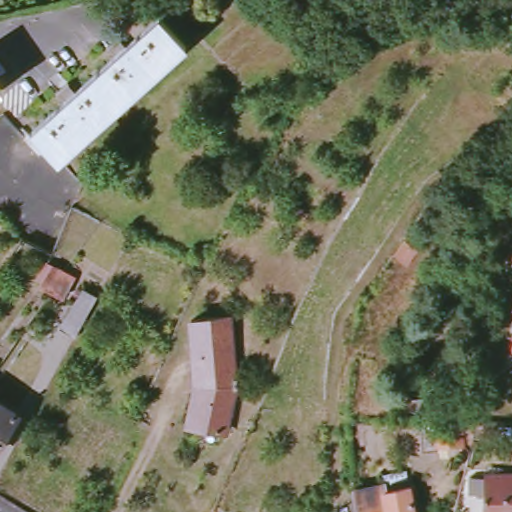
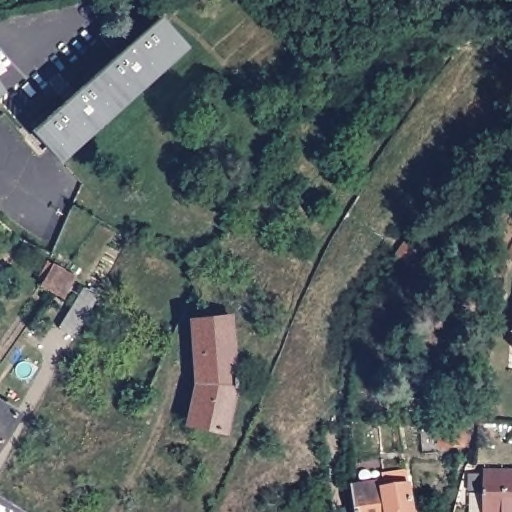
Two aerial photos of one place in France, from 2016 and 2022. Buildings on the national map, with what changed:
unchanged [(35,133),(155,18),(182,44),(60,160),(35,133)]
unchanged [(0,93),(0,85),(4,90),(0,93)]
unchanged [(59,295),(48,288),(35,282),(47,262),(60,269),(70,275),(59,295)]
unchanged [(75,334),(61,327),(85,285),(97,293),(75,334)]
unchanged [(208,422),(210,409),(197,406),(202,382),(200,334),(197,334),(197,317),(231,314),(240,389),(232,427),(208,422)]
unchanged [(0,444),(0,403),(20,417),(0,444)]
unchanged [(463,424),(465,443),(438,445),(437,427),(463,424)]
unchanged [(490,493),(475,493),(475,476),(490,476),(490,473),(512,474),(512,512),(490,512),(490,493)]
unchanged [(351,489),(382,484),(380,477),(405,474),(412,512),(355,512),(351,489)]

